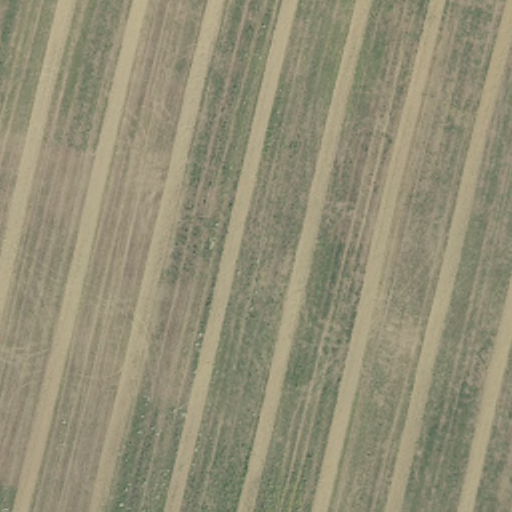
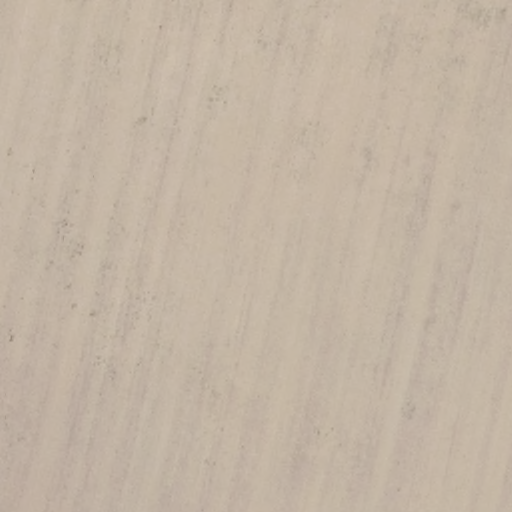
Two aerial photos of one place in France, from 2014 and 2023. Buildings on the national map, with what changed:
[]

